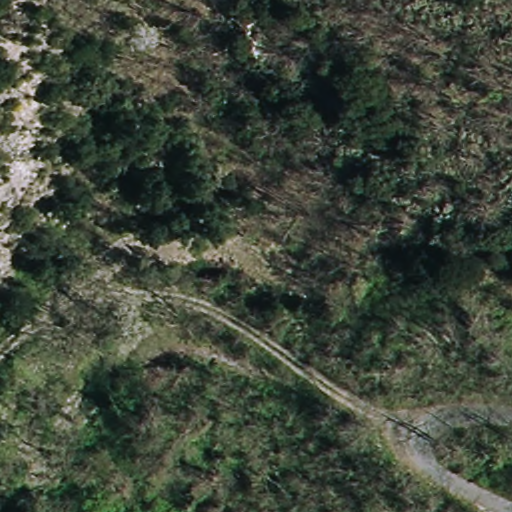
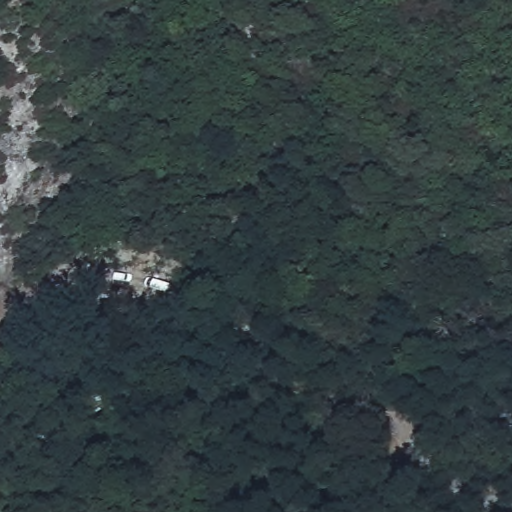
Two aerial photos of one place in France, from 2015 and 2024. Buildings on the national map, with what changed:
[]

